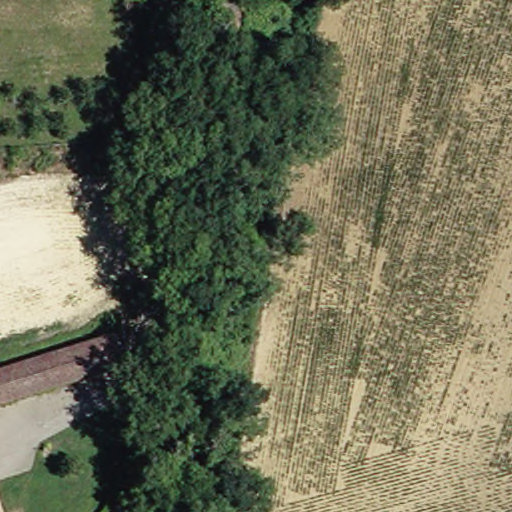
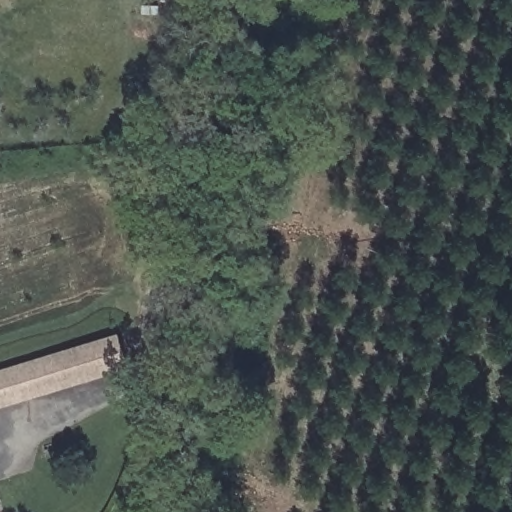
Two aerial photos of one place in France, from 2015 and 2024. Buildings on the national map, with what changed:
unchanged [(141,369),(0,409),(0,370),(132,334),(141,369)]
unchanged [(0,493),(5,512),(0,512),(0,493)]

